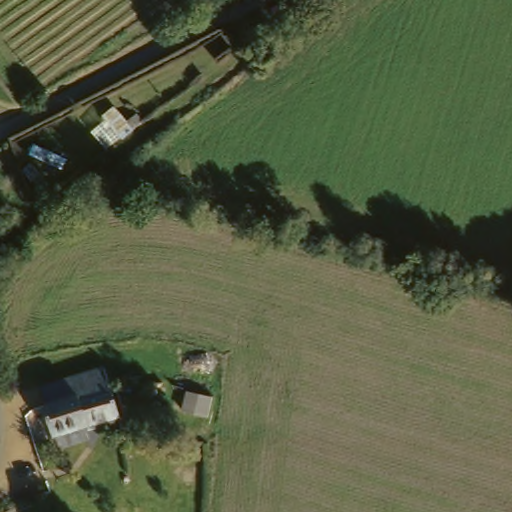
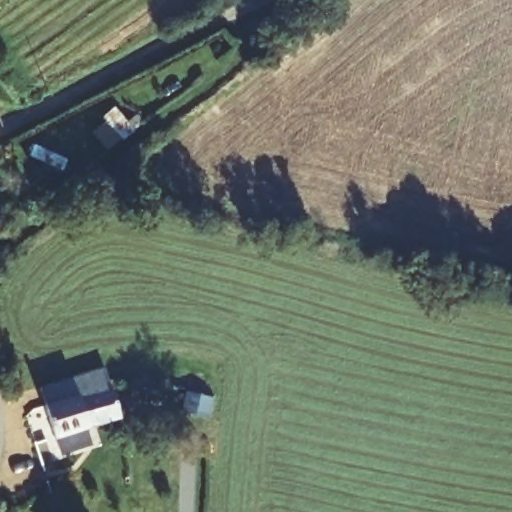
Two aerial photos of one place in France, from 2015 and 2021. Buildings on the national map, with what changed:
unchanged [(137,121),(142,128),(147,133),(132,143),(130,139),(125,131),(114,115),(127,108),(137,121)]
unchanged [(49,376),(115,363),(122,376),(114,378),(52,392),(49,376)]
unchanged [(71,443),(66,423),(60,424),(52,392),(114,378),(120,412),(102,415),(107,434),(71,443)]

